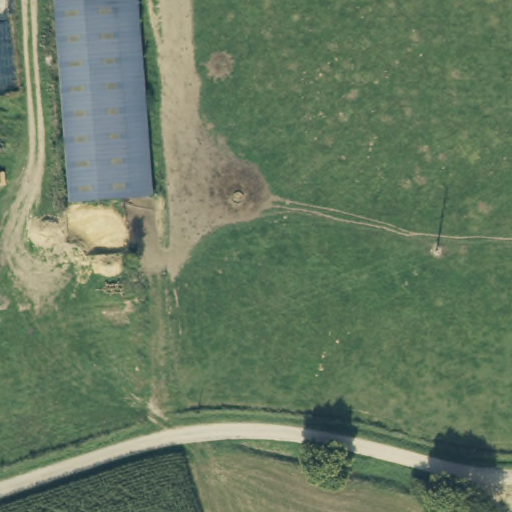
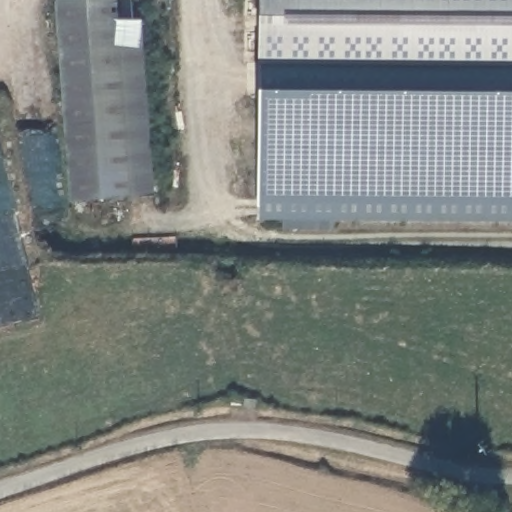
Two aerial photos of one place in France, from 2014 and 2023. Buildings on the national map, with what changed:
unchanged [(126,198),(70,202),(55,8),(54,0),(138,0),(152,196),(126,198)]
new [(334,221),(333,230),(283,229),(284,221),(257,220),(259,0),(512,0),(512,222),(334,221)]

